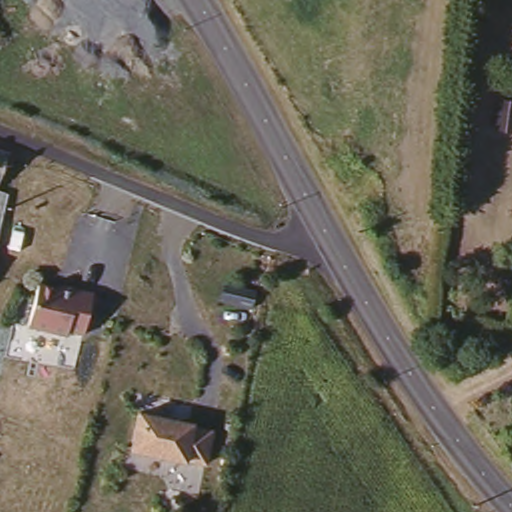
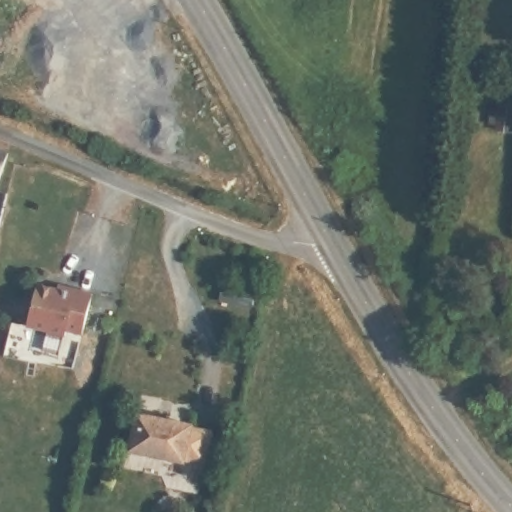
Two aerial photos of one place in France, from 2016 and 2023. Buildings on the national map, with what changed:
unchanged [(491,135),(494,101),(512,103),(512,136),(491,135)]
unchanged [(0,181),(0,153),(5,155),(0,181)]
unchanged [(0,240),(0,192),(9,195),(0,240)]
unchanged [(26,328),(36,282),(92,297),(80,341),(26,328)]
unchanged [(141,412),(197,422),(197,428),(212,432),(204,470),(131,457),(141,412)]

